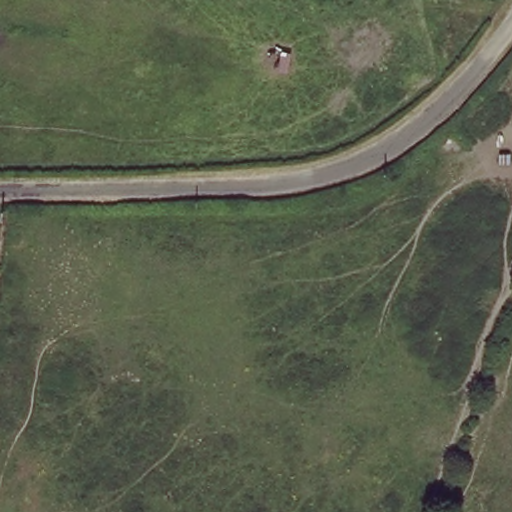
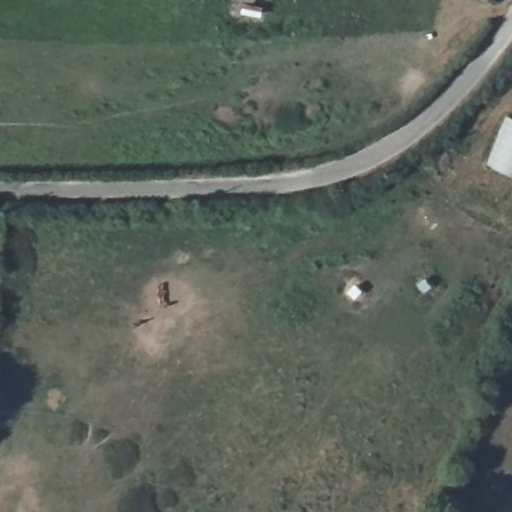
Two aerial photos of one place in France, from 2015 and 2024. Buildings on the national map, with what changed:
new [(489,165),(509,118),(512,119),(512,174),(489,165)]

